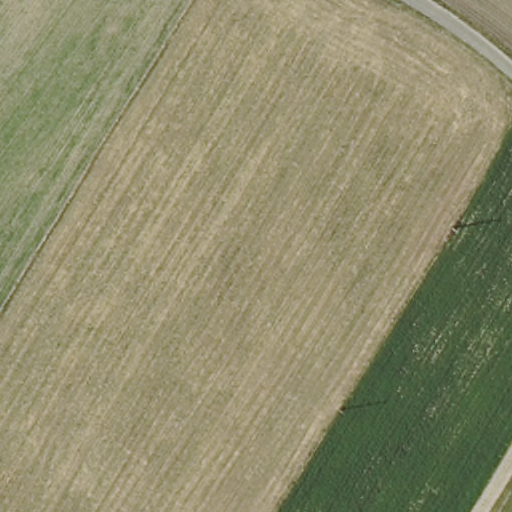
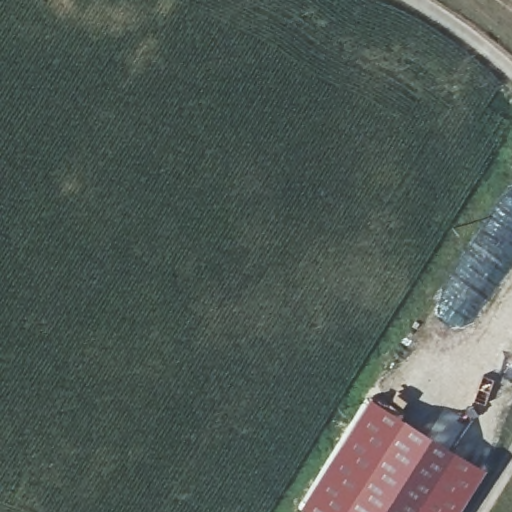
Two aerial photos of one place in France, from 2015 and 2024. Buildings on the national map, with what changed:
new [(367,395),(385,404),(393,391),(404,398),(396,411),(482,466),(453,512),(308,512),(297,505),(367,395)]

